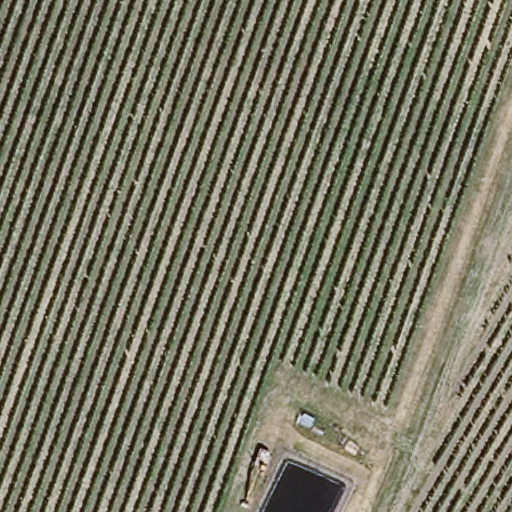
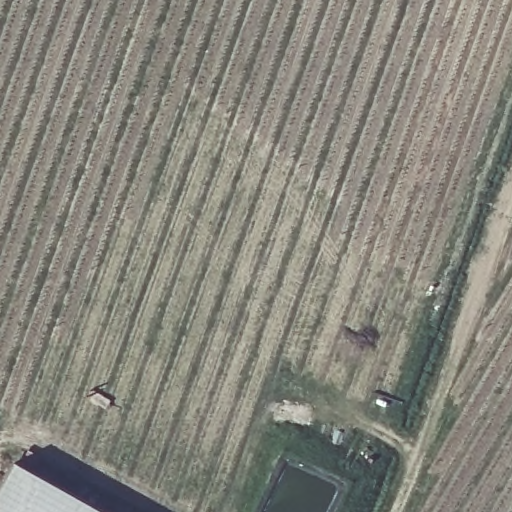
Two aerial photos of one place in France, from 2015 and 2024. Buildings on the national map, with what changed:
new [(17,462),(109,512),(0,512),(0,493),(17,462)]

